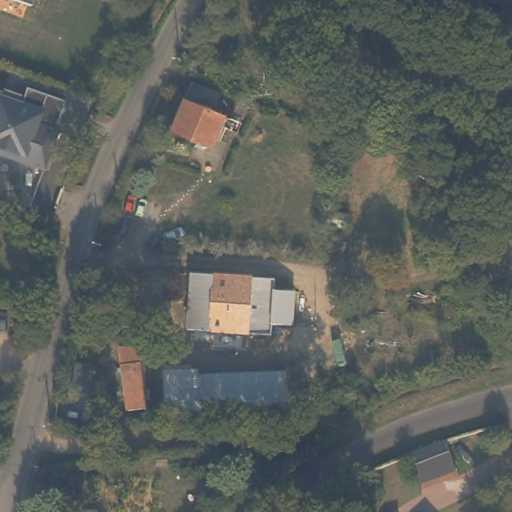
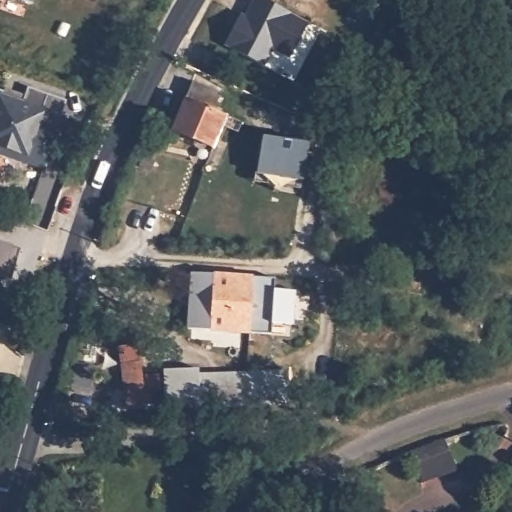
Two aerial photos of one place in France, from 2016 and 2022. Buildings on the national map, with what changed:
unchanged [(21,0),(33,0),(31,4),(21,0)]
new [(273,48),(265,64),(224,44),(240,13),(249,18),(254,9),(250,7),(254,0),(268,0),(307,21),(289,56),(273,48)]
unchanged [(217,94),(209,112),(223,118),(213,140),(207,137),(203,144),(165,127),(186,81),(217,94)]
unchanged [(62,127),(64,128),(50,168),(29,161),(31,154),(0,143),(0,88),(9,91),(8,95),(29,102),(34,87),(72,100),(62,127)]
new [(304,179),(301,186),(254,181),(256,173),(262,134),(309,140),(304,179)]
new [(12,243),(21,248),(12,280),(1,277),(0,277),(0,240),(12,243)]
unchanged [(271,275),(274,275),(274,288),(290,288),(291,282),(298,283),(298,290),(294,291),(293,321),(272,320),(272,331),(189,328),(191,272),(271,275)]
unchanged [(143,338),(151,400),(133,403),(125,340),(143,338)]
unchanged [(200,354),(201,369),(290,363),(292,399),(169,407),(165,356),(200,354)]
unchanged [(95,363),(87,394),(72,390),(77,358),(95,363)]
unchanged [(455,469),(420,482),(407,445),(418,441),(443,435),(455,469)]

